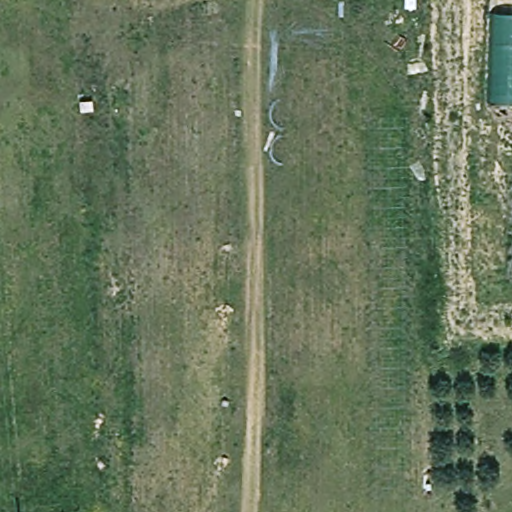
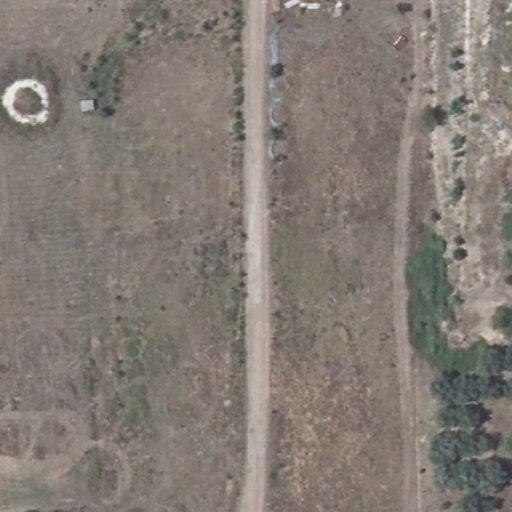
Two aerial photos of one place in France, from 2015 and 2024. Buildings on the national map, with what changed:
new [(493,0),(512,0),(512,104),(489,103),(493,0)]

